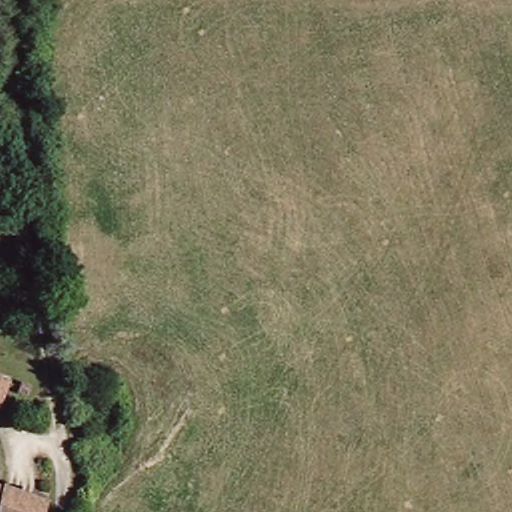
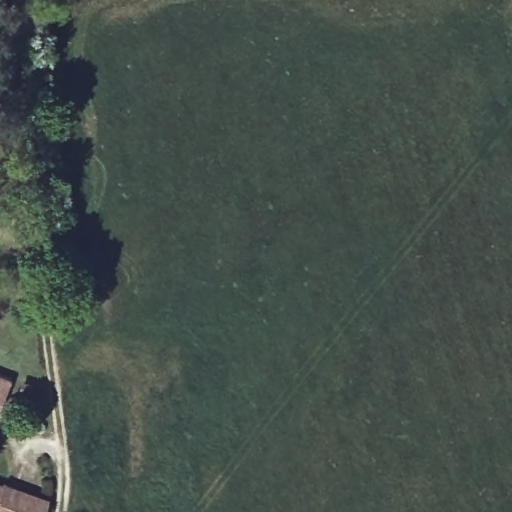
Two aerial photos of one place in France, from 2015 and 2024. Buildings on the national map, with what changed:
unchanged [(12,382),(2,409),(0,408),(0,377),(12,382)]
unchanged [(46,512),(0,512),(0,486),(49,504),(46,512)]

